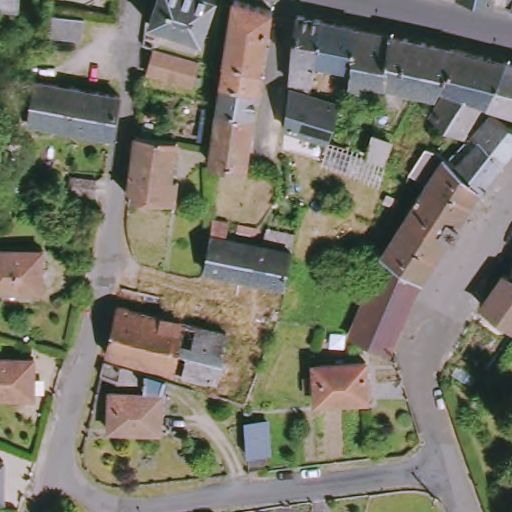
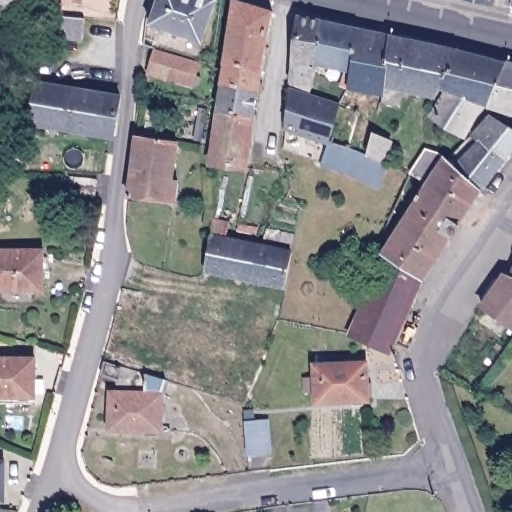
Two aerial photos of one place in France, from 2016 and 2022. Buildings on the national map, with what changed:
unchanged [(0,11),(0,0),(23,0),(22,14),(0,11)]
unchanged [(164,26),(163,31),(156,29),(166,0),(223,0),(209,42),(164,26)]
unchanged [(477,0),(501,0),(500,5),(477,0)]
unchanged [(223,146),(227,111),(227,101),(230,86),(232,66),(241,1),(279,12),(269,72),(267,86),(265,91),(262,117),(256,165),(255,170),(221,165),(223,146)]
unchanged [(324,65),(320,70),(319,89),(298,85),(305,18),(327,22),(324,65)]
unchanged [(357,72),(324,65),(327,22),(364,31),(357,72)]
unchanged [(390,87),(389,98),(356,92),(357,72),(364,31),(397,38),(390,87)]
unchanged [(436,46),(424,94),(390,87),(397,38),(436,46)]
unchanged [(462,52),(440,98),(424,94),(436,46),(462,52)]
unchanged [(205,63),(199,89),(155,76),(163,50),(205,63)]
unchanged [(495,59),(512,64),(512,65),(492,107),(489,109),(472,139),(437,119),(447,100),(440,98),(462,52),(495,59)]
unchanged [(500,108),(497,113),(492,107),(512,65),(512,111),(500,108)]
unchanged [(125,111),(121,138),(25,122),(27,109),(39,111),(44,82),(127,96),(125,111)]
unchanged [(327,141),(295,129),(297,90),(345,110),(352,112),(367,118),(359,152),(338,145),(327,141)]
unchanged [(500,117),(512,124),(512,163),(490,192),(464,167),(456,161),(470,148),(473,144),(500,117)]
unchanged [(145,136),(186,142),(182,184),(189,186),(186,202),(137,196),(145,136)]
unchanged [(390,141),(400,146),(392,165),(375,157),(380,137),(390,141)]
unchanged [(434,152),(447,156),(456,161),(464,167),(490,192),(481,204),(432,283),(430,281),(394,257),(438,186),(419,174),(434,152)]
unchanged [(109,175),(108,191),(80,188),(82,172),(109,175)]
unchanged [(207,270),(215,236),(257,246),(265,247),(269,231),(273,231),(300,237),(290,287),(207,270)]
unchanged [(52,291),(0,291),(0,250),(51,249),(52,291)]
unchanged [(398,352),(356,335),(394,257),(430,281),(398,352)]
unchanged [(512,273),(512,323),(489,307),(508,278),(512,273)]
demolished [(166,315),(237,333),(224,381),(116,352),(129,306),(166,315)]
unchanged [(42,398),(0,398),(0,358),(40,358),(42,398)]
unchanged [(114,361),(175,379),(170,396),(170,431),(117,430),(117,392),(123,392),(125,378),(110,375),(114,361)]
unchanged [(373,363),(376,401),(325,405),(324,367),(373,363)]
unchanged [(255,423),(277,423),(277,455),(255,456),(255,423)]
unchanged [(5,497),(0,496),(0,459),(7,459),(5,497)]

